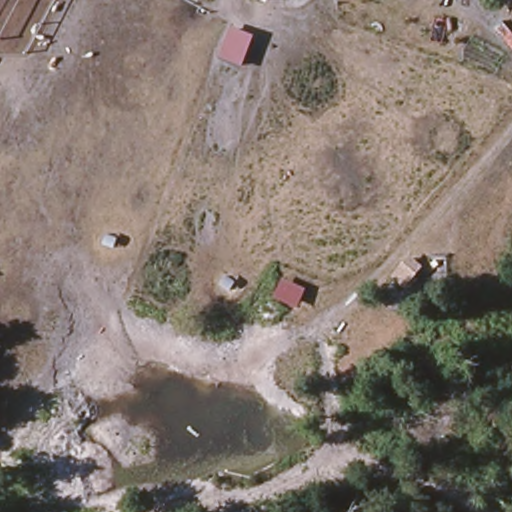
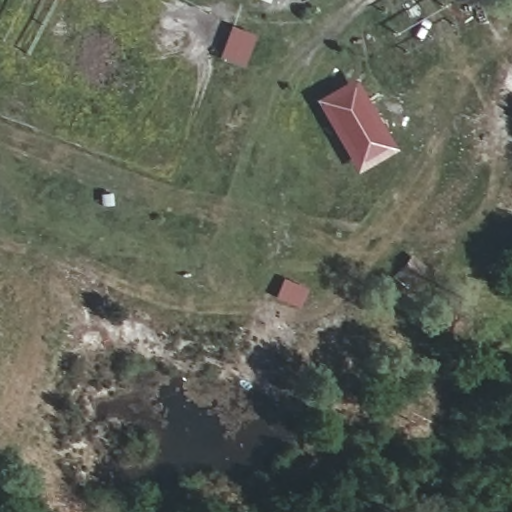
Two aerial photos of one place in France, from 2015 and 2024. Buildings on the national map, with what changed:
unchanged [(262,0),(270,0),(269,2),(262,0)]
unchanged [(246,68),(219,59),(231,25),(257,35),(246,68)]
new [(393,152),(357,172),(316,101),(355,77),(391,147),(393,152)]

